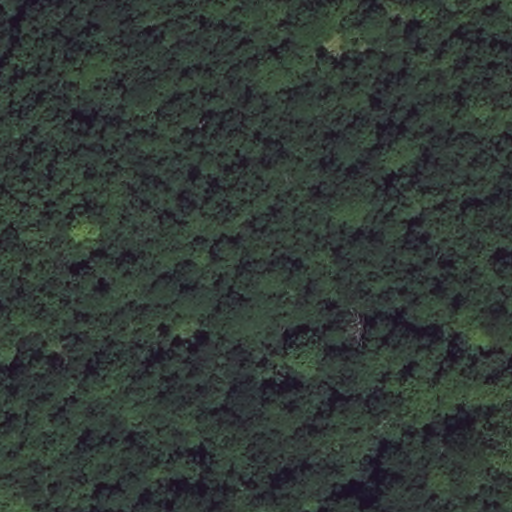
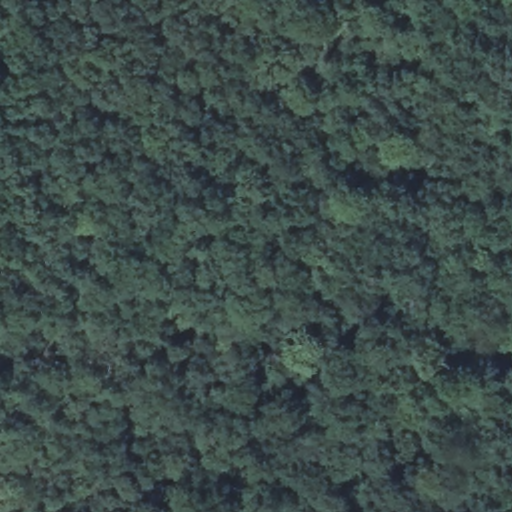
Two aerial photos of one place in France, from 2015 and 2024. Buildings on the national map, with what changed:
[]

